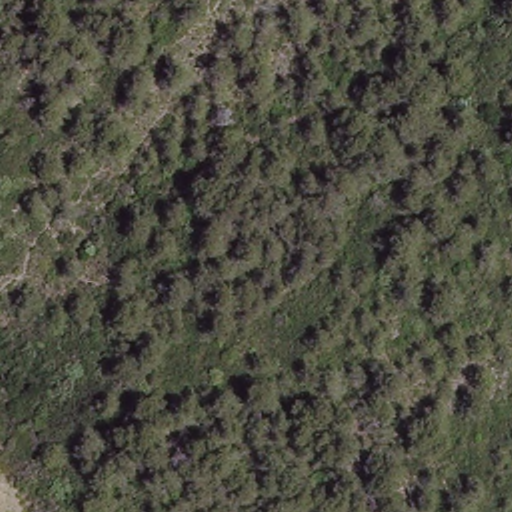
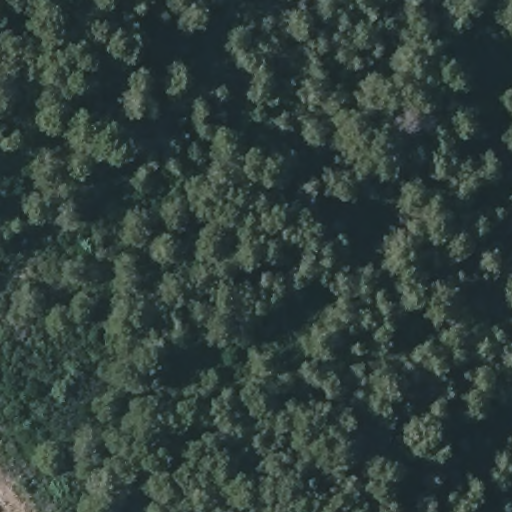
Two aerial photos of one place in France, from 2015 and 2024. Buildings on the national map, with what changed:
[]

